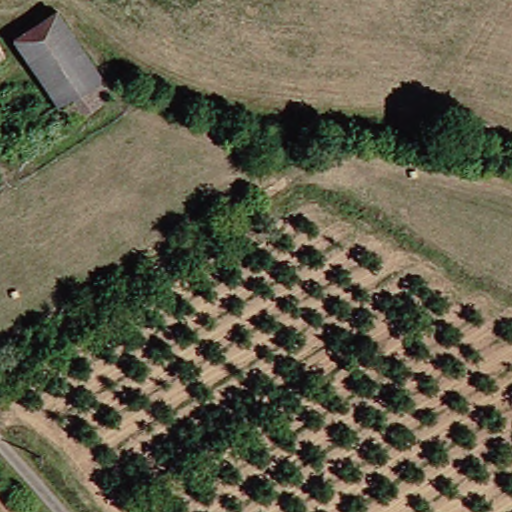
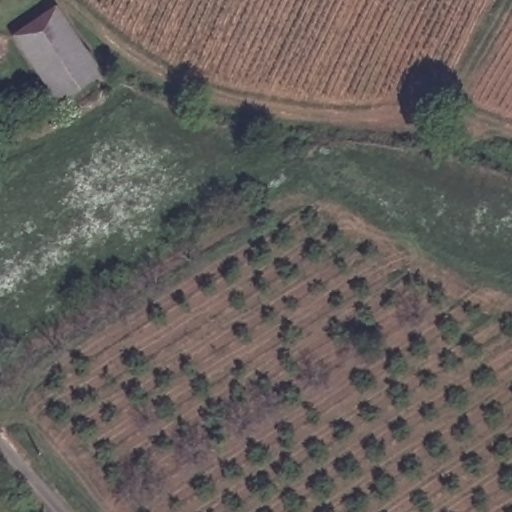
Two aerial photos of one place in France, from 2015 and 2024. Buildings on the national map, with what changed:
unchanged [(65,6),(115,79),(112,82),(120,93),(84,119),(71,102),(66,106),(20,35),(65,6)]
unchanged [(0,58),(0,40),(7,54),(0,58)]

